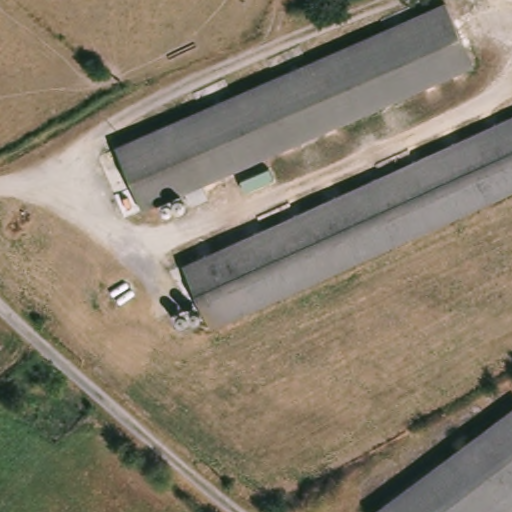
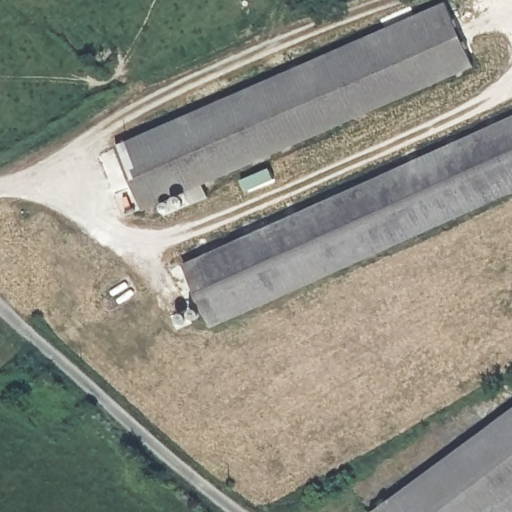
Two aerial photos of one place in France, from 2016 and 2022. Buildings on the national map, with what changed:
unchanged [(448,6),(477,76),(234,174),(160,202),(132,131),(448,6)]
unchanged [(384,181),(512,130),(512,198),(469,216),(359,261),(200,322),(177,261),(384,181)]
unchanged [(511,402),(512,403),(512,497),(502,505),(493,512),(373,512),(511,402)]

